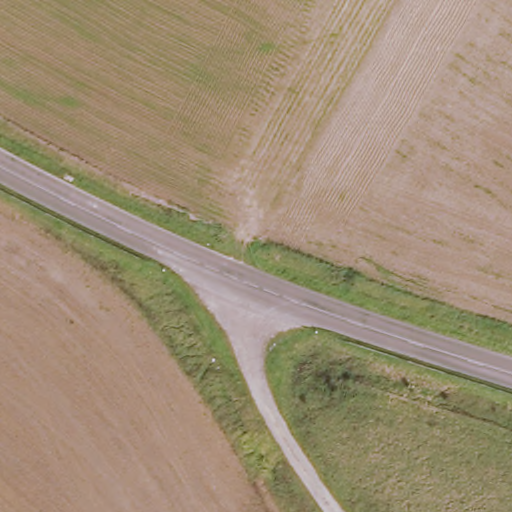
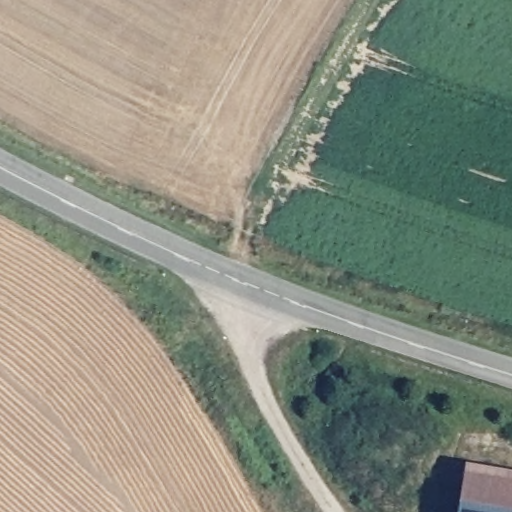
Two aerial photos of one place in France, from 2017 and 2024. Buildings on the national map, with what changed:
new [(512,464),(512,512),(458,512),(469,456),(512,464)]

